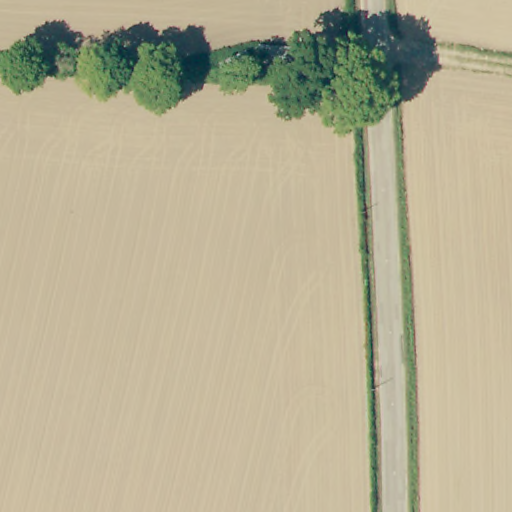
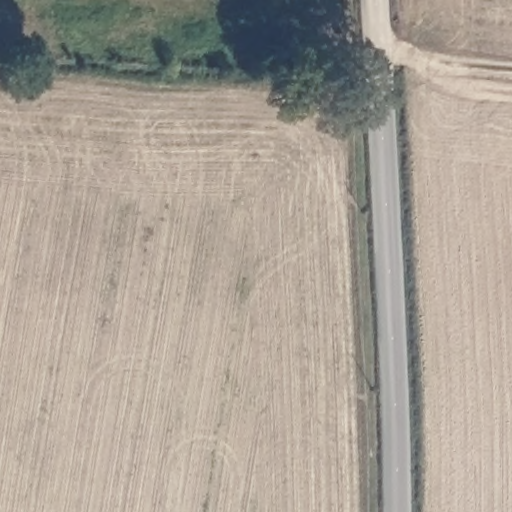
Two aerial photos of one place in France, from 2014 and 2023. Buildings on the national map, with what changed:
unchanged [(297,65),(248,65),(248,42),(297,42),(297,65)]

